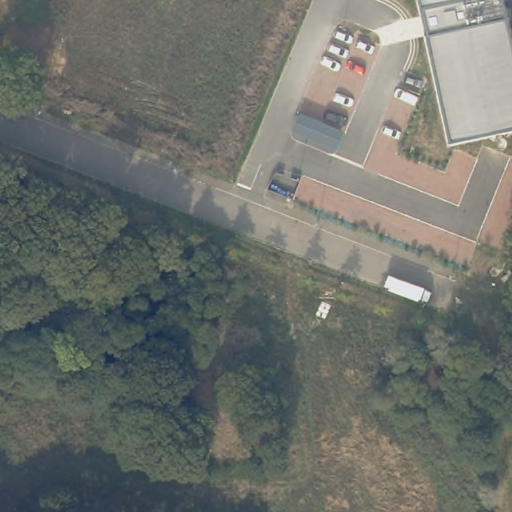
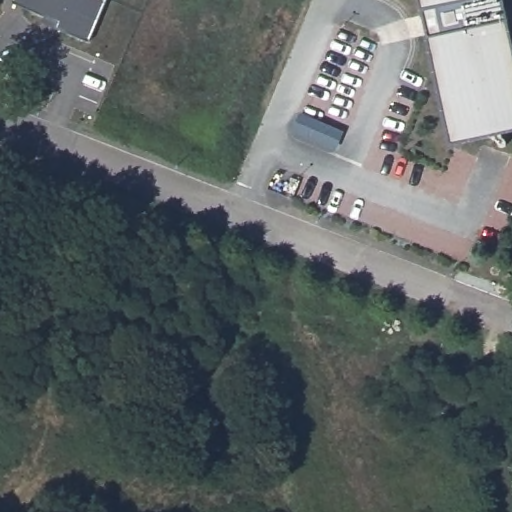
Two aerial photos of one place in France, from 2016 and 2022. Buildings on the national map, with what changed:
new [(15,0),(106,0),(91,41),(58,27),(61,20),(15,1),(15,0)]
unchanged [(512,129),(450,143),(420,0),(503,0),(512,42),(512,129)]

